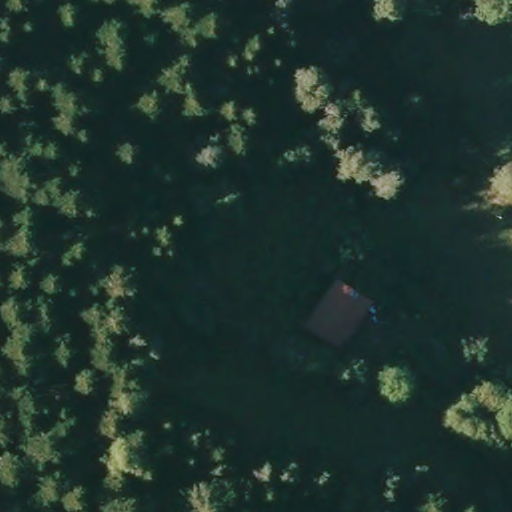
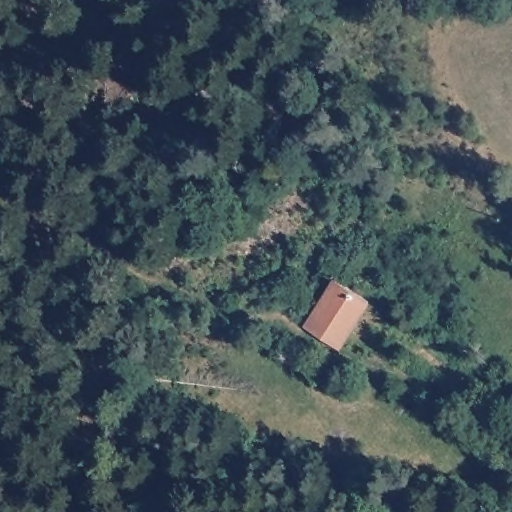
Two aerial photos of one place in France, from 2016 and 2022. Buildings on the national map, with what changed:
unchanged [(305,330),(330,281),(367,302),(344,349),(305,330)]

